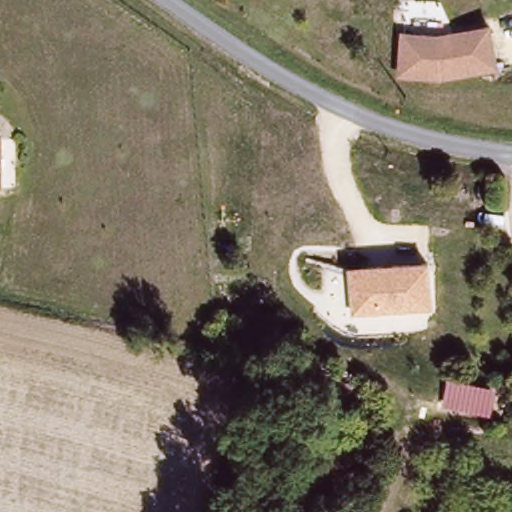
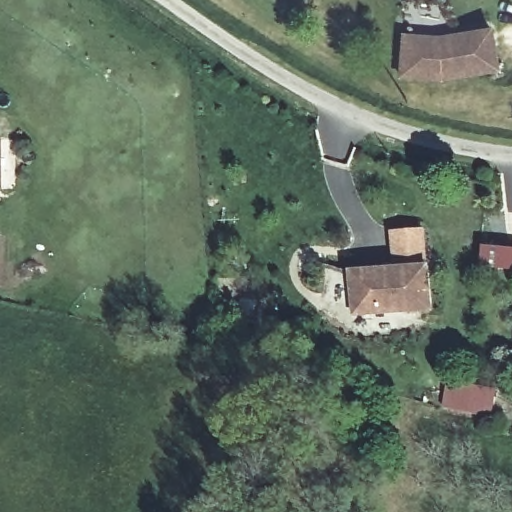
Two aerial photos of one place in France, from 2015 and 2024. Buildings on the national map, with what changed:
unchanged [(439,37),(490,26),(495,75),(442,84),(394,81),(397,31),(439,37)]
unchanged [(0,139),(5,140),(2,186),(0,185),(0,139)]
new [(390,230),(427,227),(430,264),(394,266),(390,230)]
new [(512,248),(512,270),(481,266),(484,245),(512,248)]
unchanged [(430,264),(433,311),(352,318),(349,269),(430,264)]
unchanged [(495,389),(490,416),(442,407),(447,381),(495,389)]

